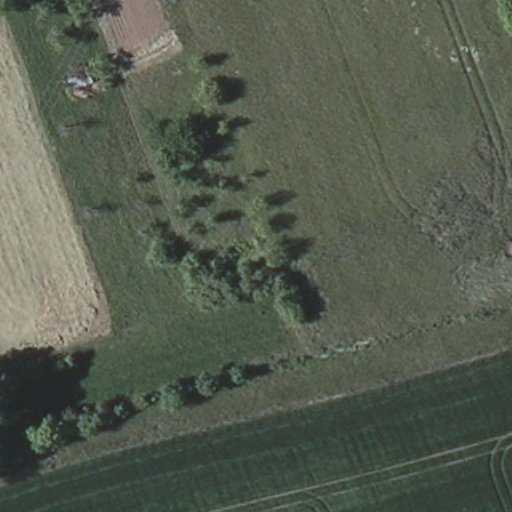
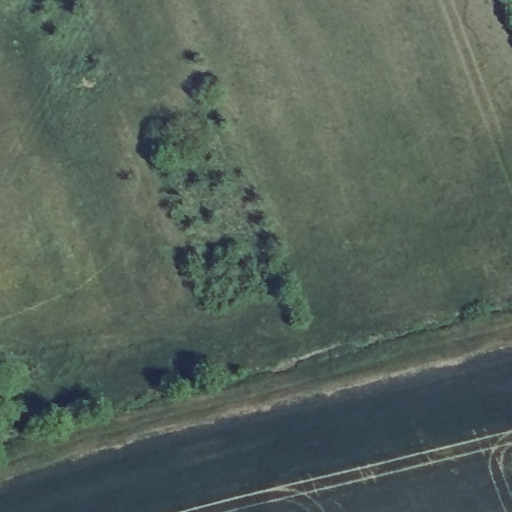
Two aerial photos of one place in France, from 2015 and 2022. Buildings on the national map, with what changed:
unchanged [(74,79),(90,74),(97,86),(80,94),(74,79)]

